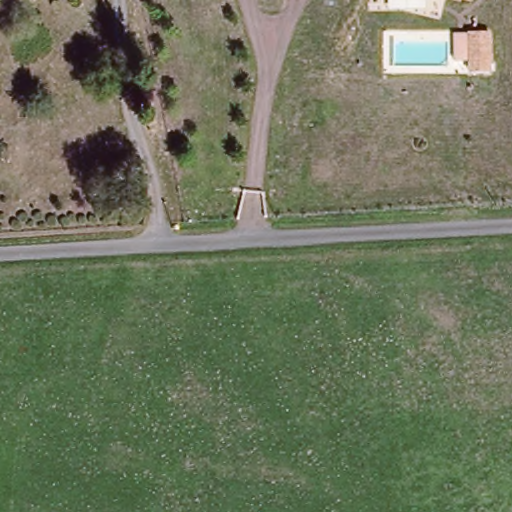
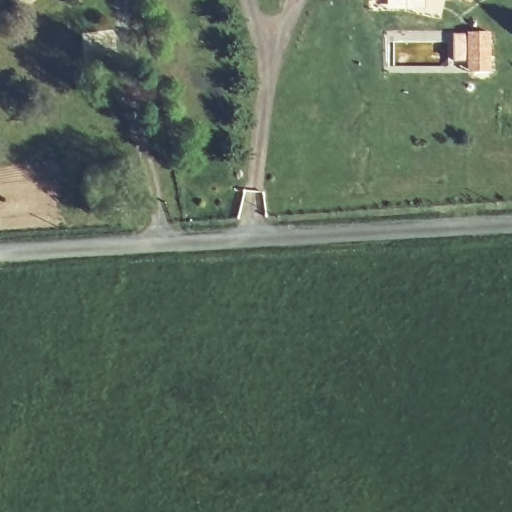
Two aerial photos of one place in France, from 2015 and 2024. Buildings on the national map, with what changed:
unchanged [(15,0),(25,0),(19,5),(15,0)]
unchanged [(465,62),(465,51),(465,31),(485,33),(485,43),(485,72),(470,71),(465,71),(465,62)]

